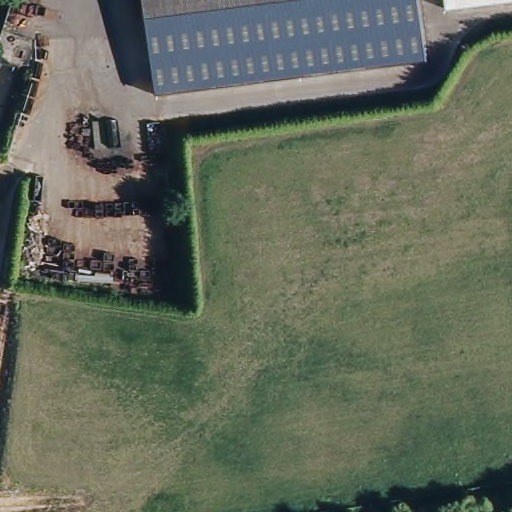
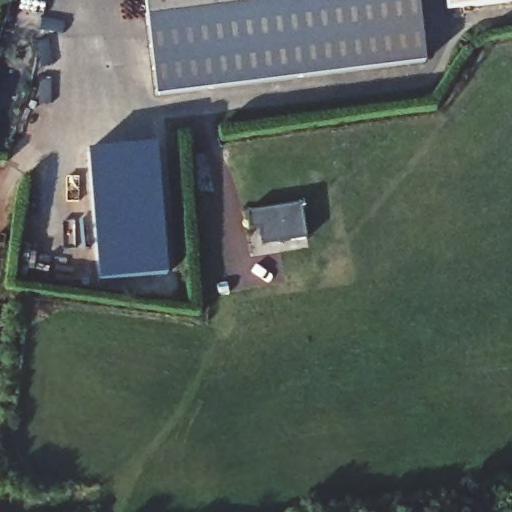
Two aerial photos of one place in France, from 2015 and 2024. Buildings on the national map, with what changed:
unchanged [(147,0),(222,0),(148,9),(147,0)]
unchanged [(157,97),(148,9),(223,0),(417,0),(424,63),(157,97)]
unchanged [(446,0),(512,0),(512,2),(447,10),(446,0)]
new [(168,274),(98,282),(85,151),(157,145),(168,274)]
new [(302,203),(307,240),(260,247),(257,231),(248,232),(245,212),(302,203)]

